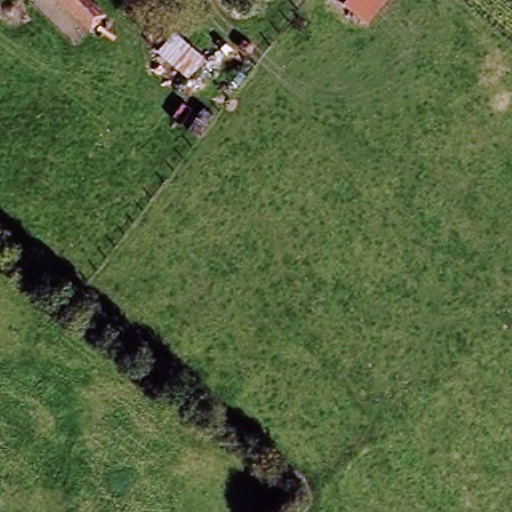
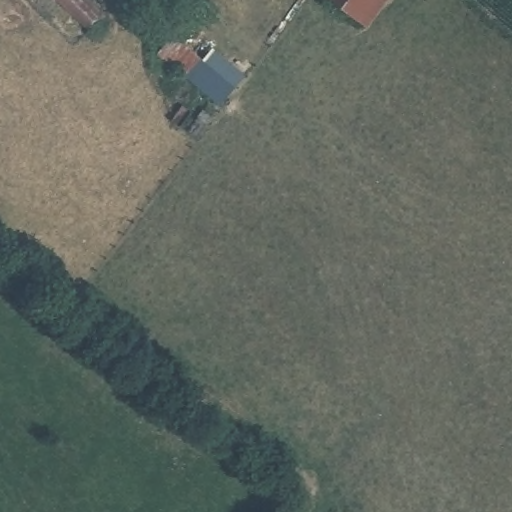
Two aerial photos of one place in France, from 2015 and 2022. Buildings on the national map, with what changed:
unchanged [(91,34),(56,0),(82,0),(104,21),(91,34)]
unchanged [(334,0),(382,0),(365,23),(334,0)]
new [(246,76),(220,108),(189,80),(161,59),(174,41),(202,61),(214,49),(246,76)]
demolished [(223,87),(214,100),(189,80),(198,68),(223,87)]

